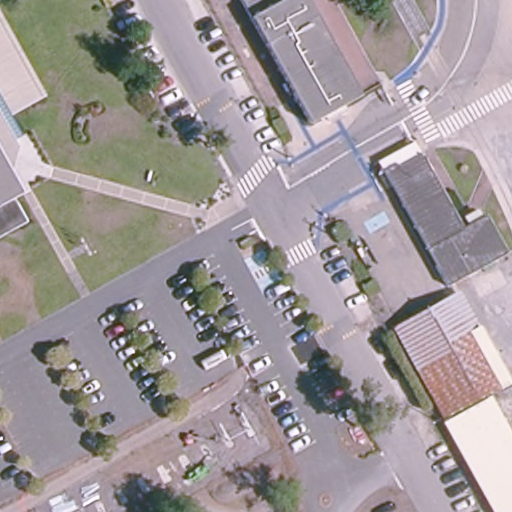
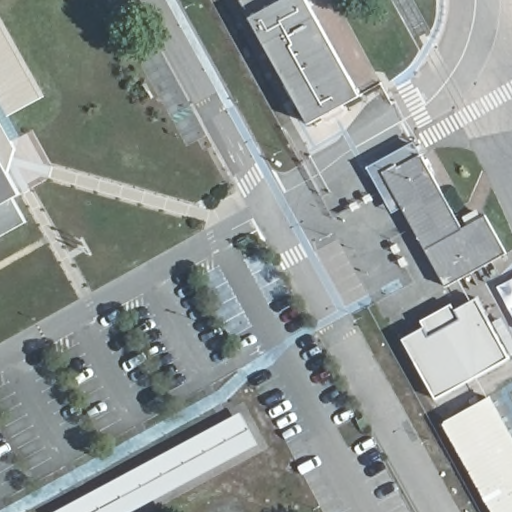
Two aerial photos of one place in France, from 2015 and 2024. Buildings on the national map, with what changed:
unchanged [(357,99),(307,126),(239,0),(304,0),(357,99)]
unchanged [(19,191),(11,196),(21,216),(0,228),(0,25),(39,97),(7,113),(18,135),(11,138),(14,146),(8,171),(19,191)]
unchanged [(397,167),(400,170),(421,160),(462,232),(486,219),(505,253),(443,288),(380,175),(397,167)]
unchanged [(461,300),(509,384),(448,419),(399,332),(461,300)]
unchanged [(512,436),(512,512),(498,512),(451,425),(493,402),(512,436)]
new [(53,512),(239,412),(256,444),(130,512),(53,512)]

